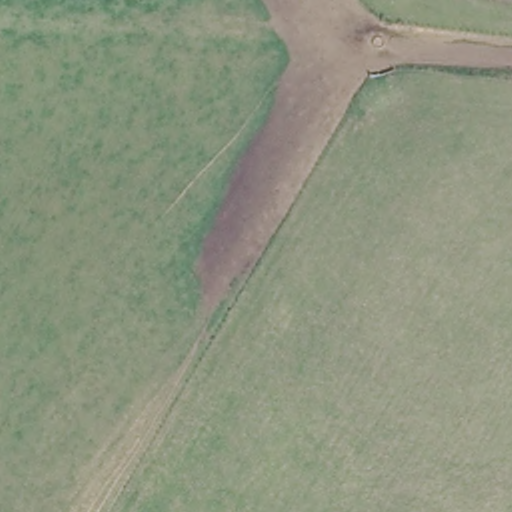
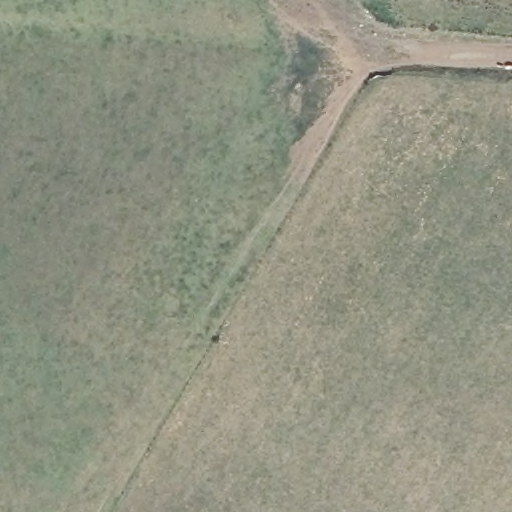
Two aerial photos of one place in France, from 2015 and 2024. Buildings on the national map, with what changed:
[]

